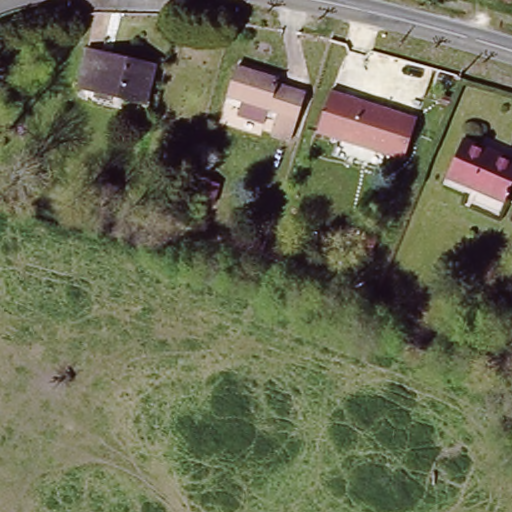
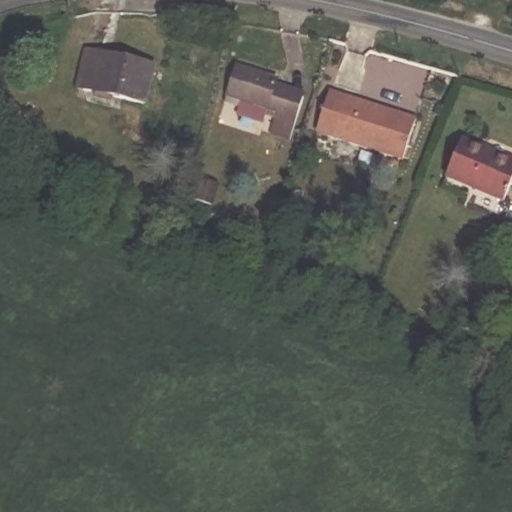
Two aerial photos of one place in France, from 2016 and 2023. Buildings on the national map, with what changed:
unchanged [(145,101),(108,92),(93,88),(100,48),(117,52),(153,60),(145,101)]
unchanged [(291,136),(276,133),(281,112),(228,97),(236,69),(276,81),(274,90),(302,98),(291,136)]
unchanged [(416,116),(401,160),(316,132),(331,90),(416,116)]
unchanged [(512,157),(512,188),(506,200),(450,176),(467,138),(512,157)]

